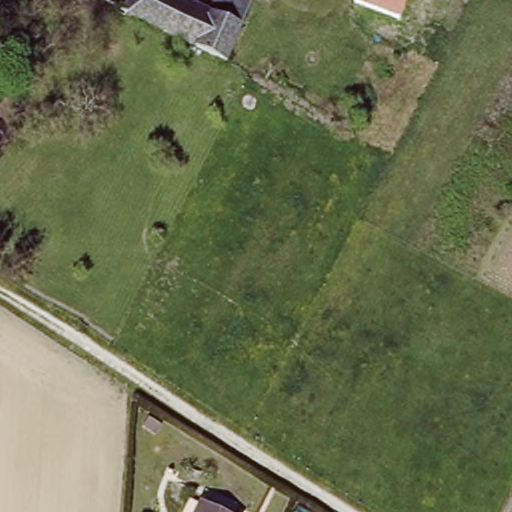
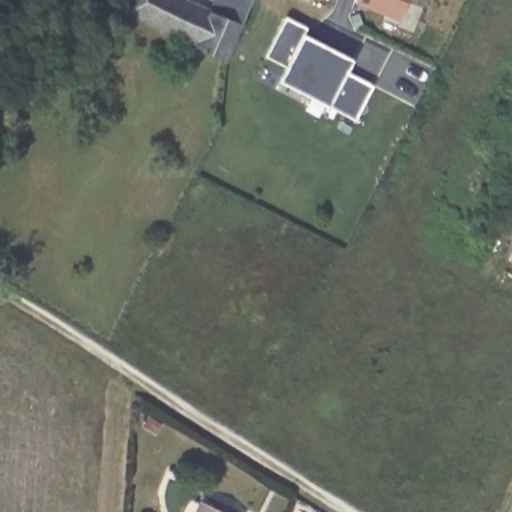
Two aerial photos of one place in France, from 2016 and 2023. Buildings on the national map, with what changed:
unchanged [(130,17),(133,8),(139,9),(143,0),(178,0),(216,17),(224,0),(230,0),(235,1),(235,0),(259,0),(230,68),(130,17)]
new [(354,0),(402,0),(394,21),(352,5),(354,0)]
new [(354,119),(327,105),(278,78),(285,65),(264,55),(285,15),(307,27),(302,34),(352,60),(346,71),(372,85),(354,119)]
new [(512,251),(512,258),(509,257),(512,251)]
unchanged [(222,512),(199,512),(202,503),(222,512)]

